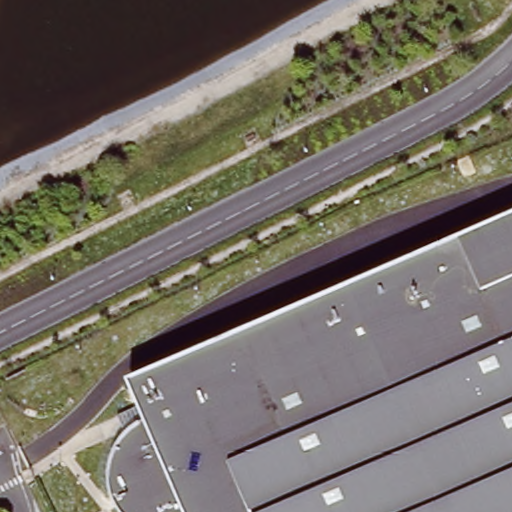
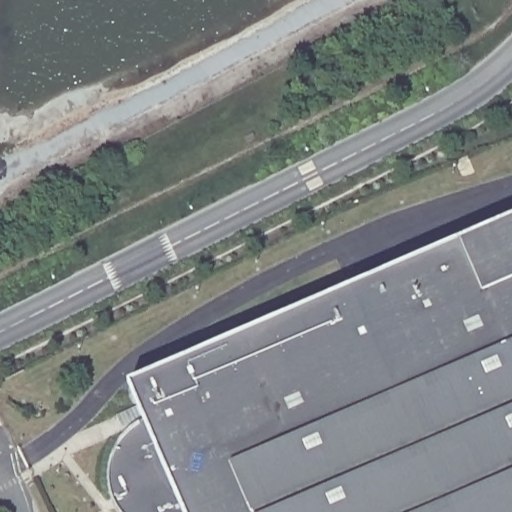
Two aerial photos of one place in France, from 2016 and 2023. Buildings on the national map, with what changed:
unchanged [(114,508),(103,476),(105,460),(120,430),(134,418),(121,388),(123,381),(512,215),(512,512),(118,512),(114,508)]

